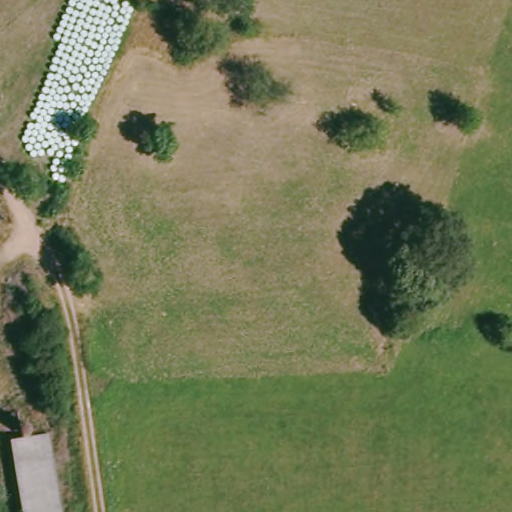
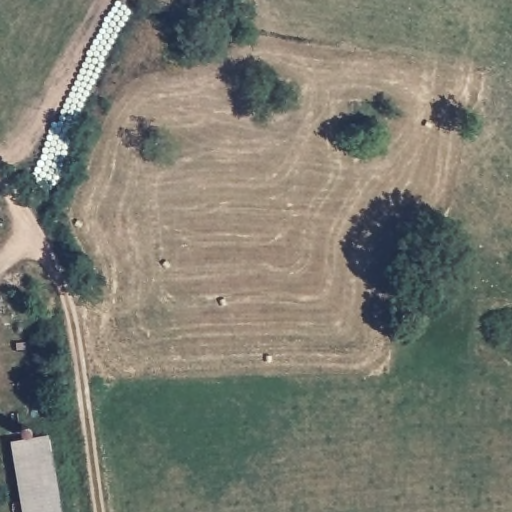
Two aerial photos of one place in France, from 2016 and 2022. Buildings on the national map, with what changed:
unchanged [(45,426),(59,512),(22,512),(22,510),(9,431),(45,426)]

